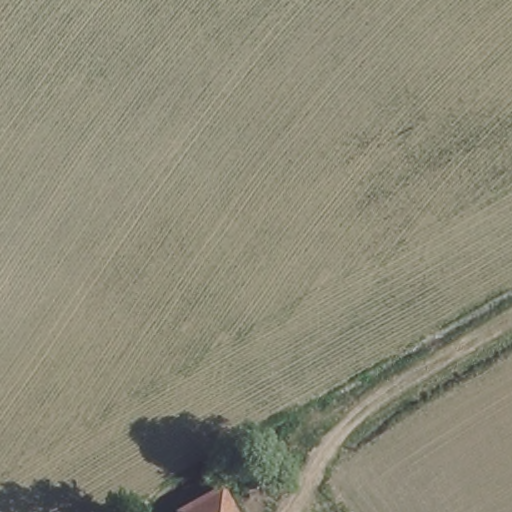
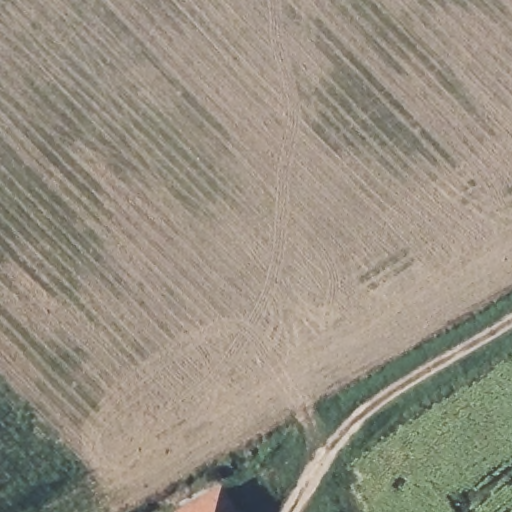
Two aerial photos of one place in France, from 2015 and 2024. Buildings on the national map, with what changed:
unchanged [(230,512),(179,512),(177,509),(218,487),(230,512)]

